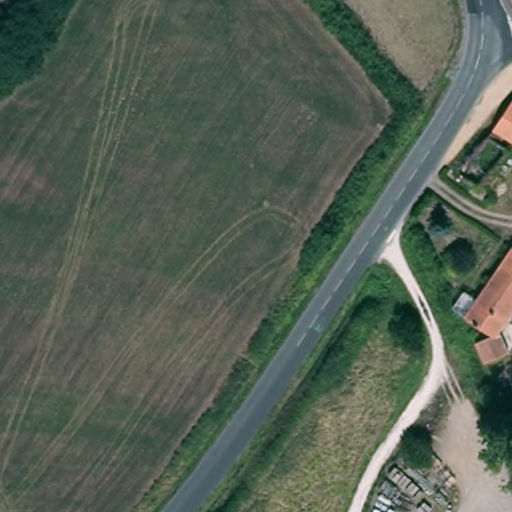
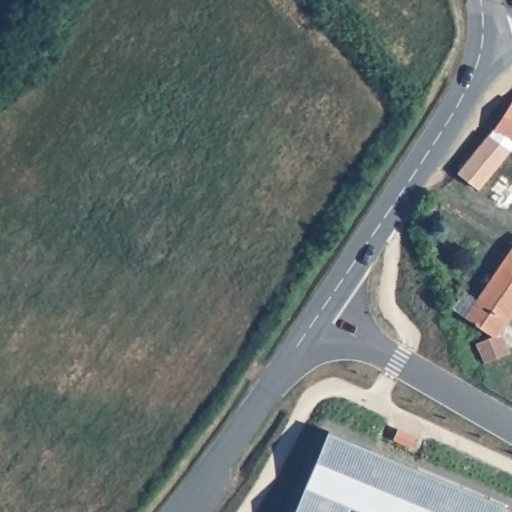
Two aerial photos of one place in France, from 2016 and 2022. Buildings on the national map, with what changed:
unchanged [(508,134),(499,129),(512,109),(512,136),(508,134)]
new [(512,151),(478,190),(457,172),(489,135),(512,151)]
unchanged [(512,345),(512,351),(490,361),(481,342),(497,336),(470,316),(457,308),(470,291),(481,298),(512,255),(512,316),(500,334),(506,332),(512,345)]
new [(329,431),(507,505),(504,512),(365,512),(350,506),(348,512),(295,512),(329,431)]

